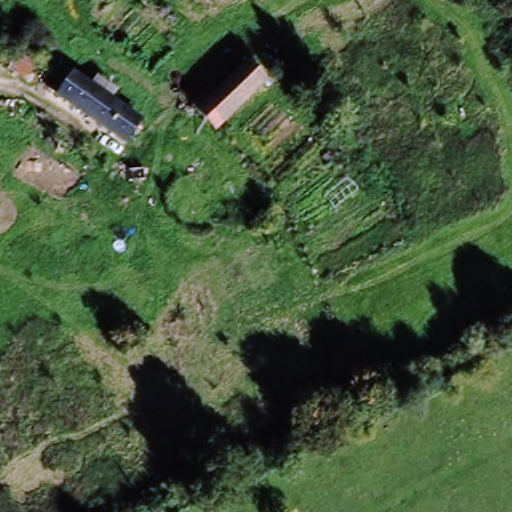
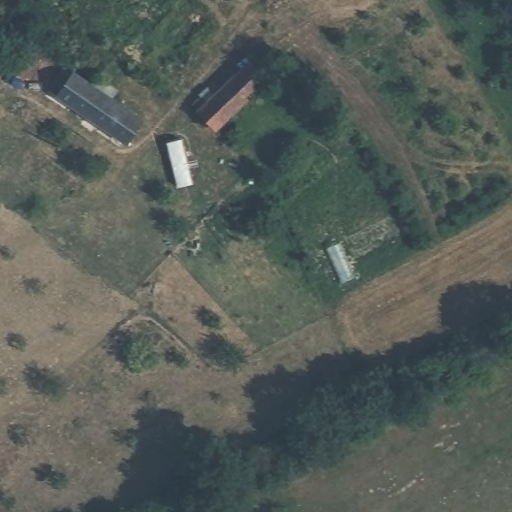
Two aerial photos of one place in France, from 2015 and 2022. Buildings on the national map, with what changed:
unchanged [(39,37),(55,50),(35,77),(18,65),(39,37)]
unchanged [(211,87),(218,94),(253,62),(269,78),(217,129),(198,112),(192,106),(211,87)]
unchanged [(120,144),(48,94),(61,76),(85,93),(95,79),(114,92),(104,106),(132,126),(120,144)]

